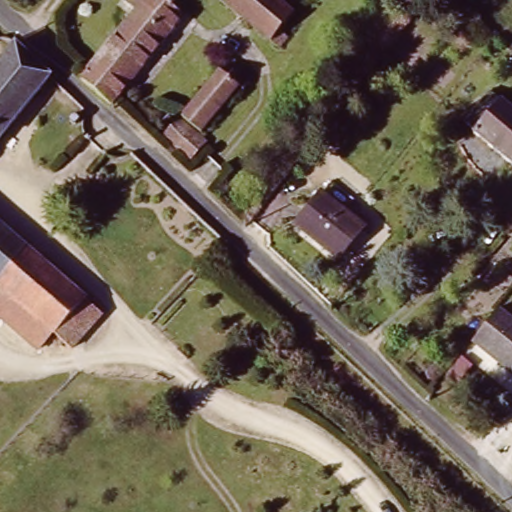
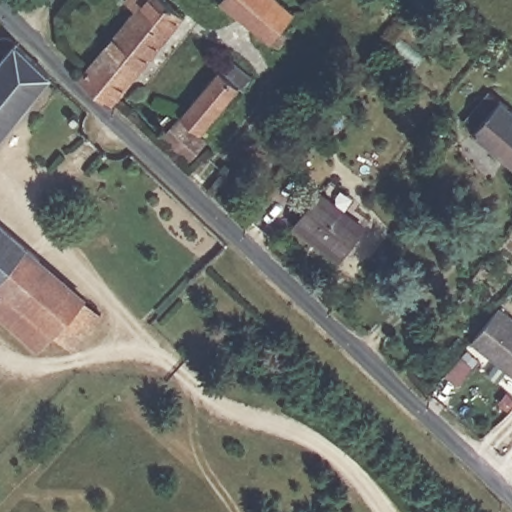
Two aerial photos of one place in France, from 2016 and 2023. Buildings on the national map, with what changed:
unchanged [(165,0),(185,17),(168,37),(134,10),(125,3),(127,0),(165,0)]
unchanged [(282,30),(288,35),(280,45),(226,0),(279,0),(295,14),(282,30)]
unchanged [(134,10),(168,37),(136,76),(102,48),(134,10)]
unchanged [(0,155),(0,68),(17,46),(58,83),(0,155)]
unchanged [(102,48),(136,76),(113,102),(81,73),(102,48)]
unchanged [(185,117),(220,75),(230,61),(252,80),(242,91),(240,89),(203,132),(185,117)]
unchanged [(502,105),(512,113),(512,165),(476,136),(502,105)]
unchanged [(77,113),(82,119),(76,125),(71,119),(77,113)]
unchanged [(167,121),(173,127),(178,121),(207,145),(192,162),(163,139),(168,132),(162,127),(167,121)]
unchanged [(343,259),(310,233),(296,222),(323,191),(335,201),(368,228),(343,259)]
unchanged [(41,259),(9,296),(0,288),(0,225),(41,259)]
unchanged [(13,331),(29,313),(9,296),(41,259),(108,315),(76,354),(47,329),(31,347),(13,331)]
unchanged [(512,314),(512,371),(475,344),(503,307),(512,314)]

